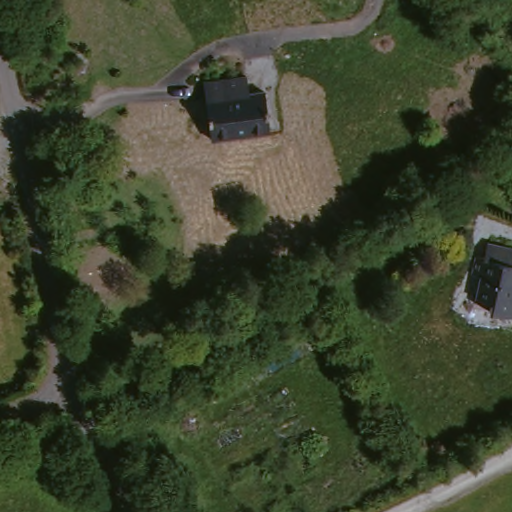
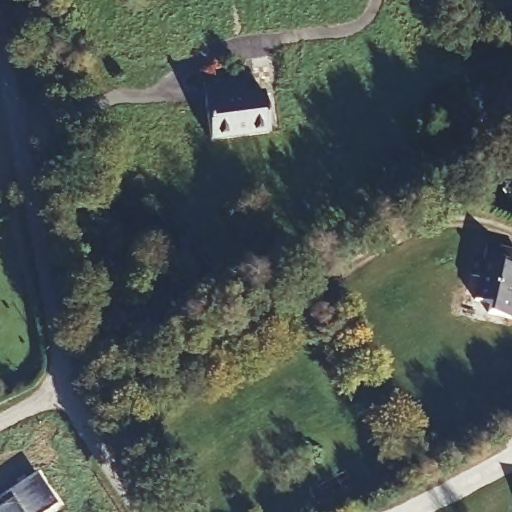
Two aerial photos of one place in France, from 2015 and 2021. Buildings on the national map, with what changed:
unchanged [(243,93),(258,92),(266,132),(202,146),(191,86),(240,76),(243,93)]
unchanged [(512,250),(512,257),(510,266),(512,267),(512,321),(466,310),(466,300),(456,298),(454,294),(455,290),(457,288),(464,285),(467,279),(464,278),(470,259),(481,258),(484,244),(512,250)]
new [(3,487),(33,467),(56,501),(40,512),(0,512),(0,503),(10,496),(3,487)]

